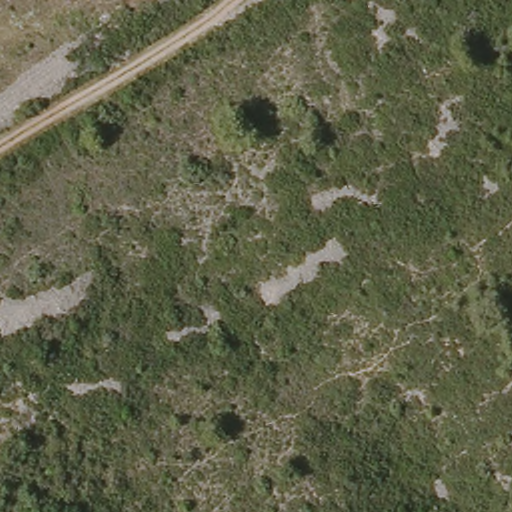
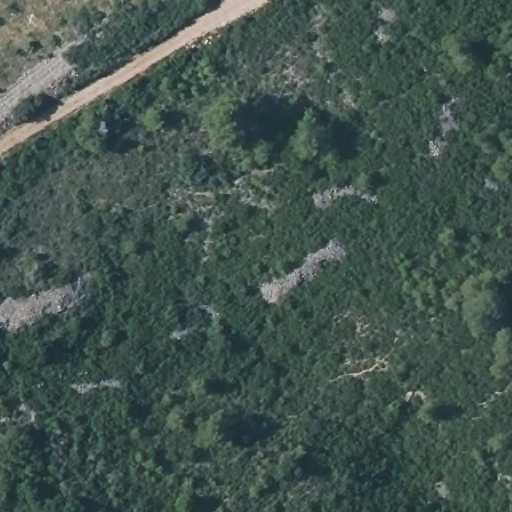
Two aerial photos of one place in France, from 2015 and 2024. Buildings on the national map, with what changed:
[]

